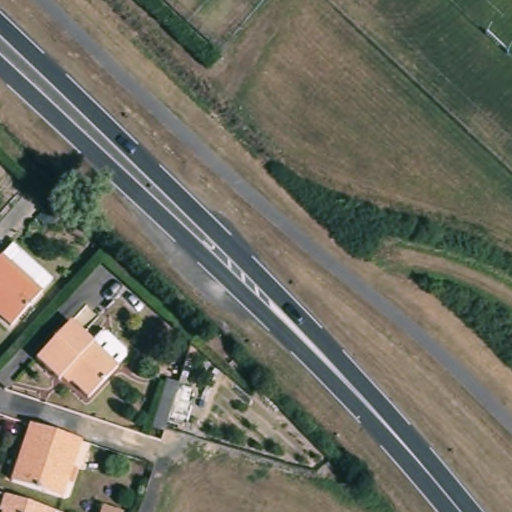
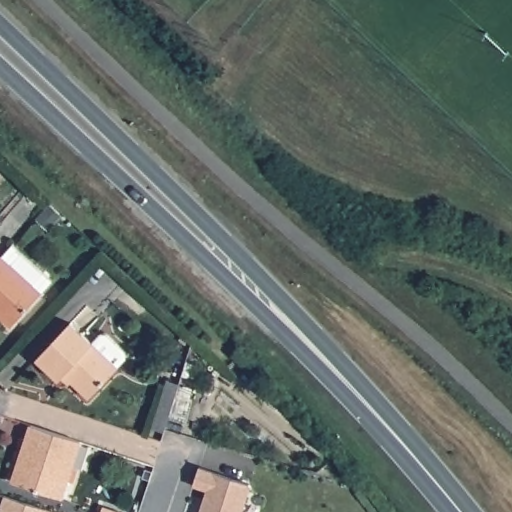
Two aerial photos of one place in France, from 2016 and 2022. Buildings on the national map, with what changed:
unchanged [(0,323),(0,259),(6,253),(47,291),(36,302),(8,331),(0,323)]
unchanged [(92,397),(68,375),(63,380),(40,358),(74,322),(121,367),(92,397)]
unchanged [(62,498),(12,481),(19,459),(24,461),(30,443),(24,441),(30,425),(80,440),(62,498)]
new [(195,469),(245,485),(246,487),(238,512),(198,512),(204,492),(189,487),(195,469)]
unchanged [(10,495),(51,508),(60,511),(60,512),(4,512),(10,495)]
unchanged [(109,510),(116,512),(109,512),(109,510)]

